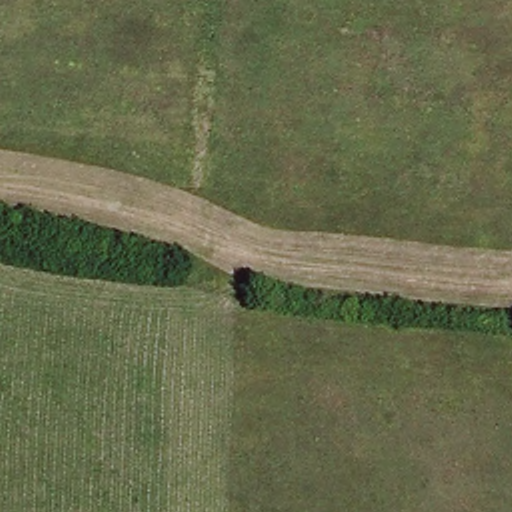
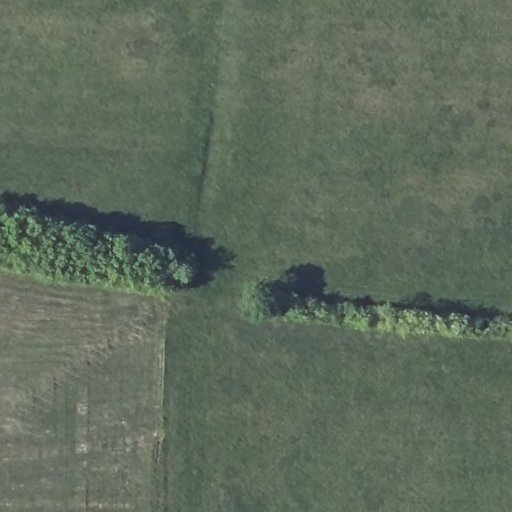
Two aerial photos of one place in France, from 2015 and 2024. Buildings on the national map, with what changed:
[]

